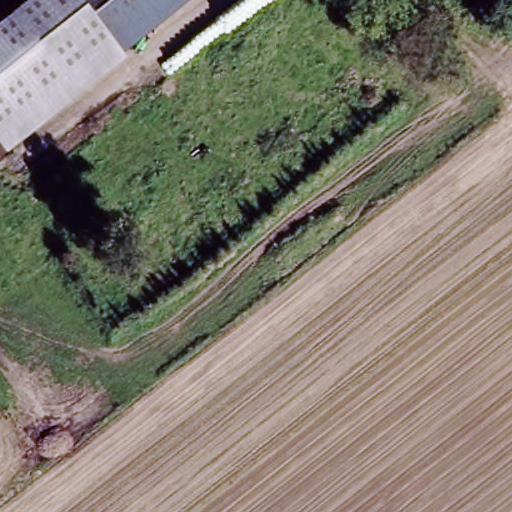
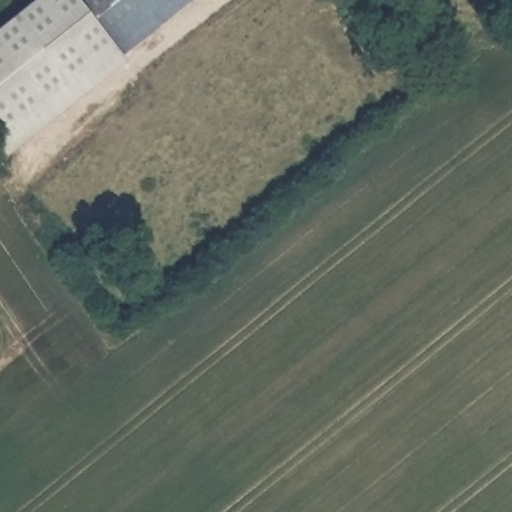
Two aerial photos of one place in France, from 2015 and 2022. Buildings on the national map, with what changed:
unchanged [(124,65),(6,160),(0,152),(0,30),(37,0),(72,0),(119,59),(124,65)]
unchanged [(72,0),(192,0),(119,59),(72,0)]

